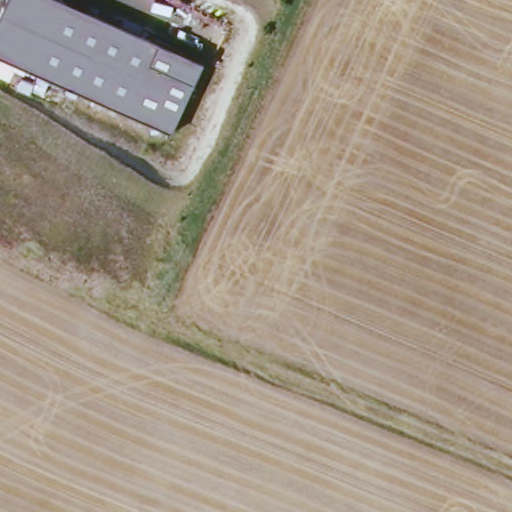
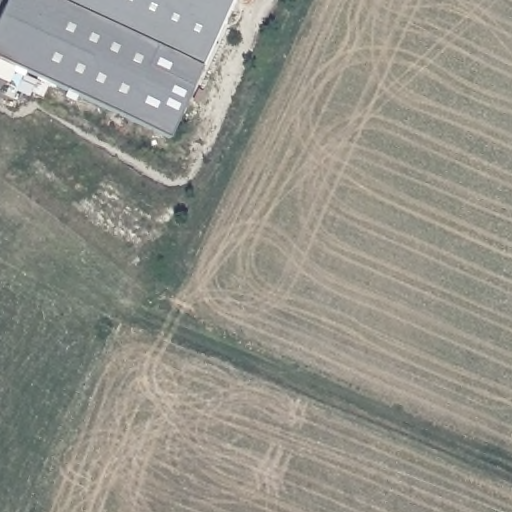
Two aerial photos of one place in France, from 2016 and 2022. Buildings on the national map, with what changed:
unchanged [(0,56),(0,8),(4,0),(60,0),(201,64),(169,134),(0,56)]
new [(231,0),(201,64),(60,0),(231,0)]

